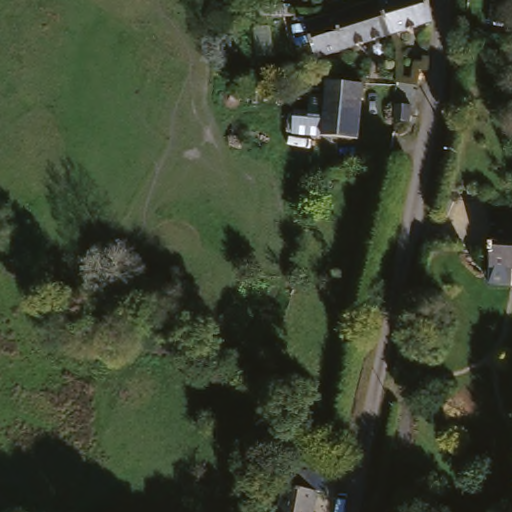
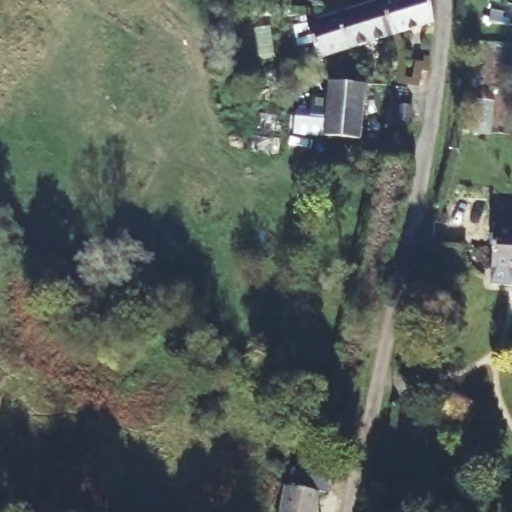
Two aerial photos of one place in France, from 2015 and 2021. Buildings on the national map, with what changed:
unchanged [(309,21),(316,19),(376,0),(384,36),(316,56),(316,53),(318,50),(314,36),(297,25),(309,21)]
unchanged [(432,17),(431,23),(384,36),(376,0),(429,0),(432,17)]
unchanged [(367,131),(329,132),(333,81),(370,82),(367,131)]
unchanged [(417,107),(414,123),(400,121),(398,121),(400,104),(417,107)]
unchanged [(512,264),(498,264),(501,226),(512,226),(512,264)]
unchanged [(294,490),(329,496),(327,512),(320,512),(286,512),(287,506),(292,507),(294,490)]

